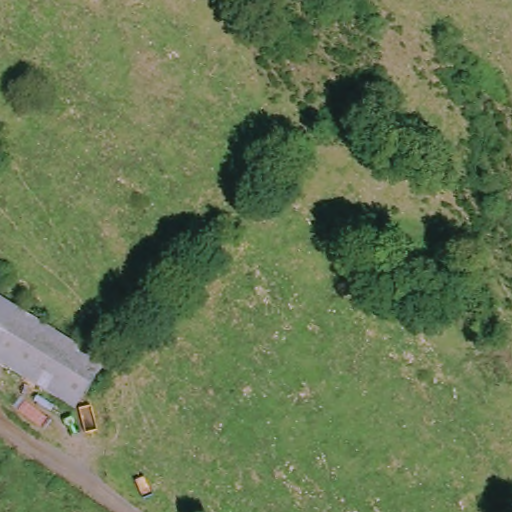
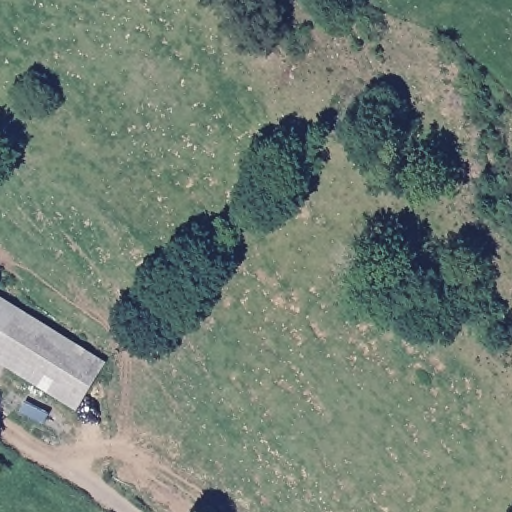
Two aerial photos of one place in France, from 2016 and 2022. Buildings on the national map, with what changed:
unchanged [(0,362),(0,298),(100,364),(70,409),(0,362)]

